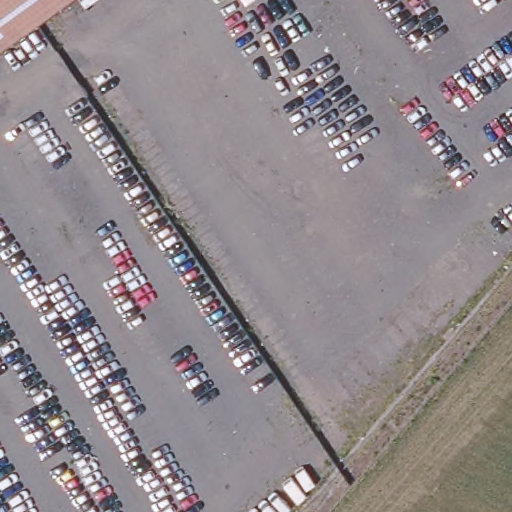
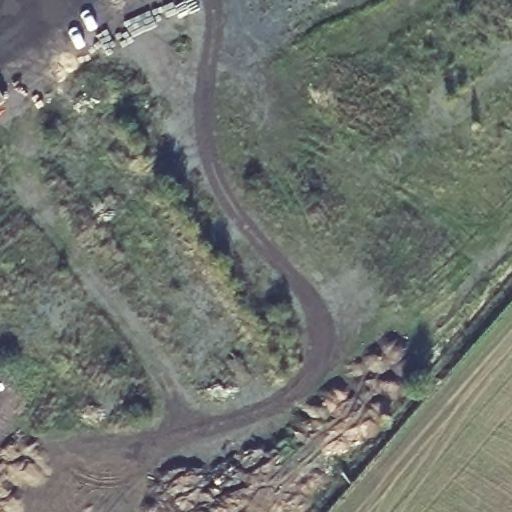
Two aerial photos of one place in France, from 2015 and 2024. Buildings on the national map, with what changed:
demolished [(0,49),(0,0),(65,0),(0,49)]

